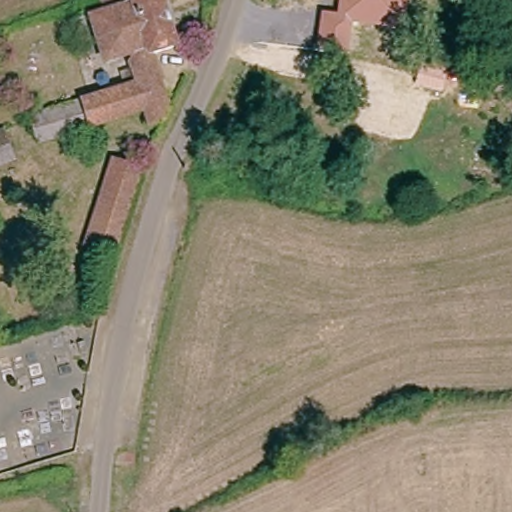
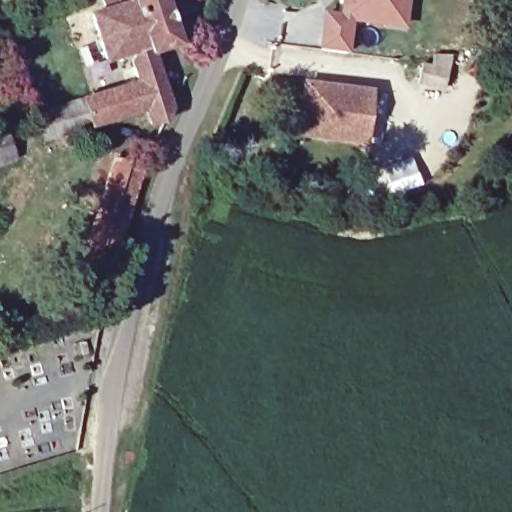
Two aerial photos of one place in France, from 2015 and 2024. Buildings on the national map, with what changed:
unchanged [(26,113),(136,82),(129,59),(106,66),(90,12),(129,0),(171,0),(184,45),(154,53),(176,119),(149,128),(143,112),(95,131),(36,147),(26,113)]
unchanged [(317,47),(322,10),(338,12),(339,0),(408,0),(405,27),(351,22),(349,52),(317,47)]
unchanged [(420,62),(448,70),(443,92),(415,83),(420,62)]
new [(374,89),(367,146),(296,139),(303,80),(374,89)]
unchanged [(113,152),(146,164),(119,256),(84,247),(113,152)]

